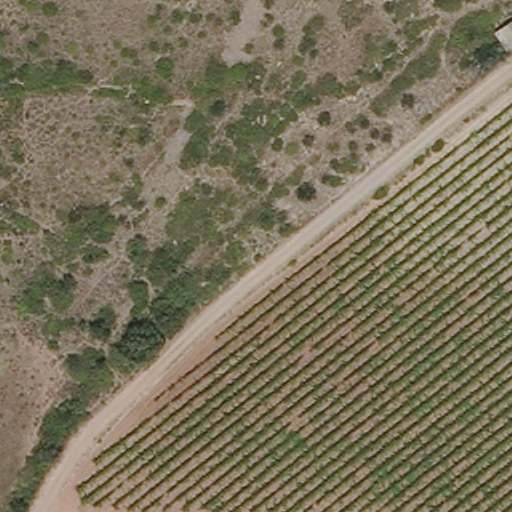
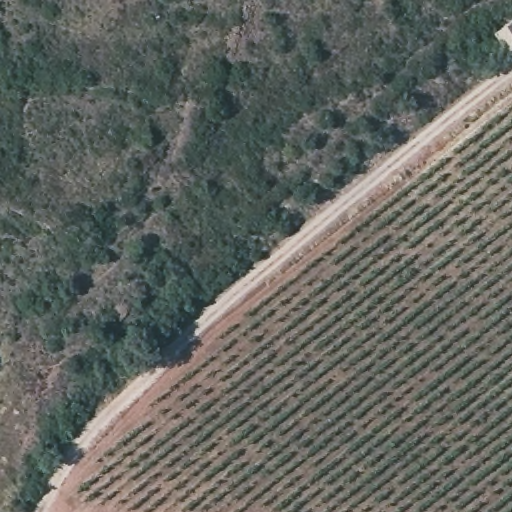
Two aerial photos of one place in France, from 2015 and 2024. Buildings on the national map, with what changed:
unchanged [(499,35),(512,25),(512,51),(499,35)]

